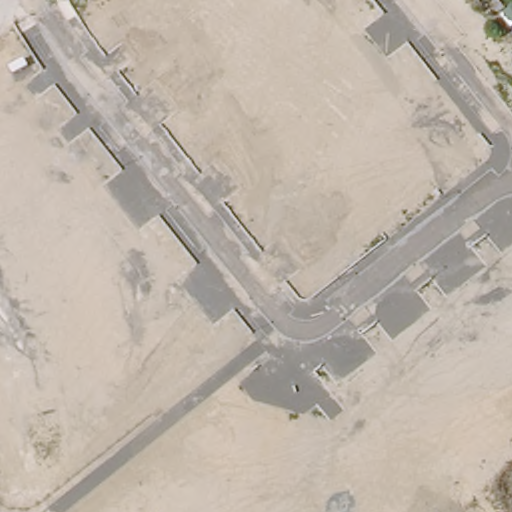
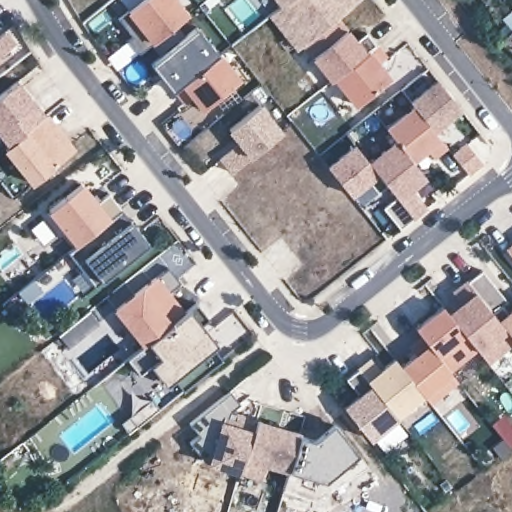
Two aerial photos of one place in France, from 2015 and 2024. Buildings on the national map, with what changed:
new [(141,0),(176,0),(187,15),(140,54),(128,40),(132,36),(118,18),(141,0)]
new [(281,2),(285,0),(357,0),(337,16),(301,45),(299,47),(269,12),(281,2)]
new [(281,2),(279,0),(285,0),(281,2)]
new [(347,28),(367,51),(334,77),(330,81),(311,57),(301,45),(337,16),(347,28)]
new [(175,89),(172,91),(150,64),(197,26),(218,54),(175,89)]
new [(375,44),(385,57),(377,63),(390,78),(356,105),(334,77),(375,44)]
new [(3,56),(0,59),(0,52),(3,56)]
new [(218,54),(239,80),(202,109),(193,96),(185,102),(175,89),(218,54)]
new [(438,80),(460,107),(433,130),(411,102),(438,80)]
new [(17,81),(45,116),(8,145),(0,136),(0,94),(17,81)]
new [(282,131),(250,157),(230,171),(220,157),(237,142),(226,130),(260,102),(282,131)]
new [(396,196),(378,174),(352,195),(326,164),(353,143),(367,160),(394,139),(384,126),(412,104),(433,130),(440,139),(413,161),(425,177),(414,186),(429,207),(402,228),(385,207),(396,196)]
new [(51,169),(32,185),(3,150),(8,145),(45,116),(76,149),(51,169)]
new [(77,244),(49,210),(81,184),(97,204),(110,194),(121,209),(77,244)]
new [(77,244),(121,209),(150,244),(96,286),(67,251),(77,244)]
new [(512,247),(512,257),(507,250),(512,247)]
new [(143,345),(115,310),(168,267),(181,282),(168,293),(183,312),(143,345)]
new [(462,303),(454,292),(468,281),(512,336),(512,342),(487,362),(476,348),(449,370),(423,337),(416,329),(444,307),(450,314),(462,303)]
new [(37,284),(46,295),(31,307),(22,296),(37,284)]
new [(143,345),(183,312),(196,302),(209,318),(197,327),(222,358),(183,390),(158,358),(140,373),(127,358),(143,345)]
new [(512,307),(512,336),(498,318),(512,307)]
new [(417,355),(411,347),(423,337),(449,370),(457,380),(430,402),(423,393),(402,367),(417,355)]
new [(371,358),(380,370),(395,358),(402,367),(423,393),(396,415),(358,368),(371,358)]
new [(360,395),(346,378),(358,368),(396,415),(397,417),(370,439),(345,407),(360,395)]
new [(225,424),(251,430),(257,420),(300,432),(300,433),(289,468),(269,462),(265,476),(213,466),(225,424)]
new [(289,468),(300,433),(320,440),(338,426),(370,466),(315,498),(283,488),(289,468)]

